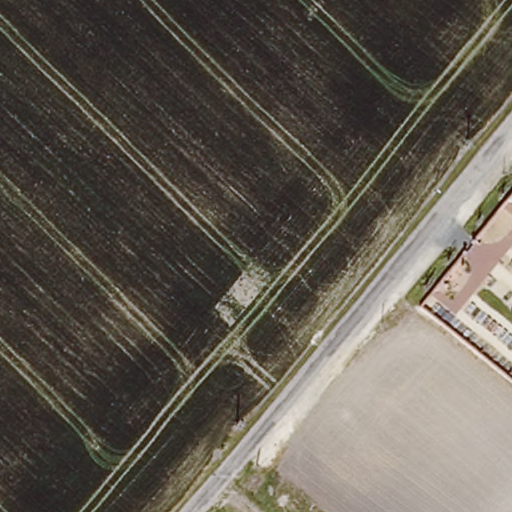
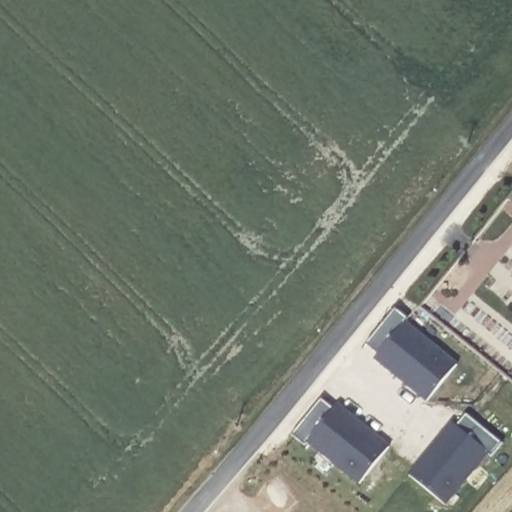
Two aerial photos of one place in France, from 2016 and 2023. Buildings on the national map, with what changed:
new [(395,310),(410,322),(407,325),(457,363),(427,402),(375,358),(379,353),(368,346),(395,310)]
new [(322,400),(334,411),(339,402),(391,446),(360,486),(309,443),(307,447),(293,435),(322,400)]
new [(453,422),(459,428),(466,415),(502,445),(491,459),(489,456),(447,507),(409,475),(453,422)]

